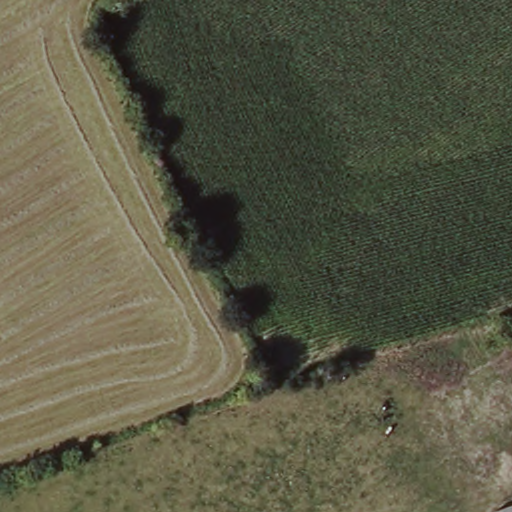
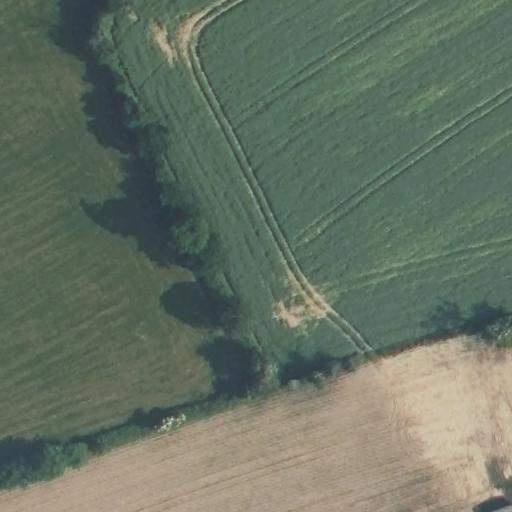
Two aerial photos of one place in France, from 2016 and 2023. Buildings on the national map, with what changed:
unchanged [(512,512),(497,512),(512,506),(512,512)]

